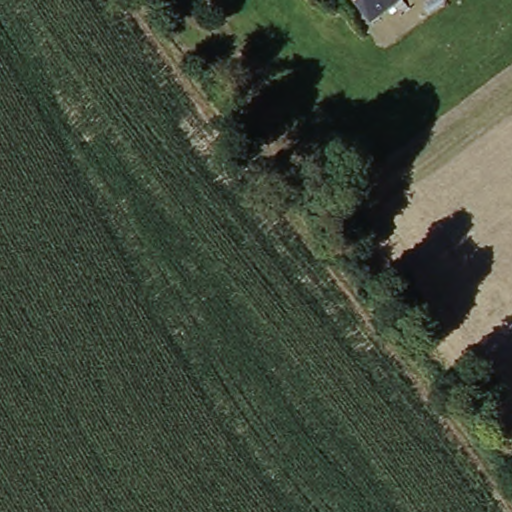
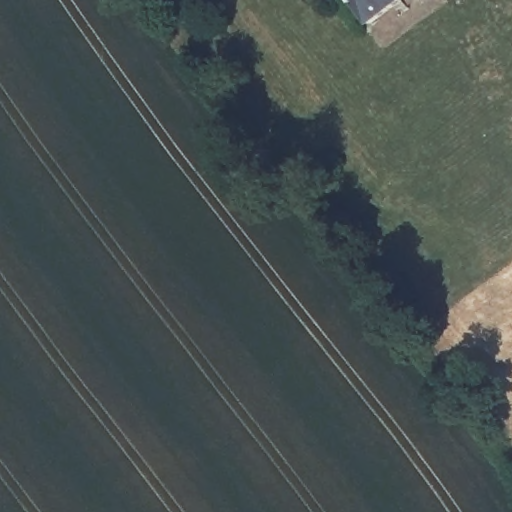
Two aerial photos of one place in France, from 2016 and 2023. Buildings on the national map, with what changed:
unchanged [(369,26),(349,0),(402,0),(369,26)]

